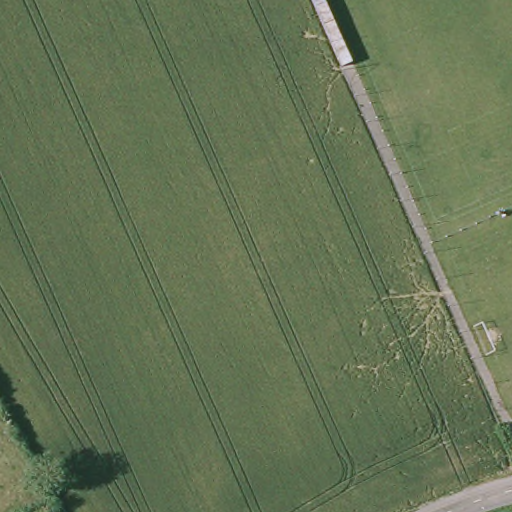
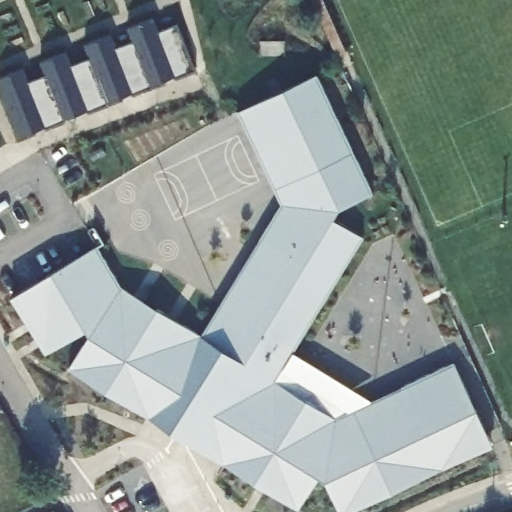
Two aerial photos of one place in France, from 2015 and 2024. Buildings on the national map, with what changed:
unchanged [(351,67),(341,72),(309,0),(321,0),(351,67)]
new [(175,80),(172,73),(151,82),(153,89),(133,97),(130,90),(108,99),(111,106),(89,115),(86,108),(65,117),(67,123),(46,131),(44,125),(20,134),(0,84),(0,81),(25,70),(30,84),(47,77),(42,64),(67,54),(72,67),(91,59),(86,46),(111,36),(116,49),(133,42),(128,29),(154,19),(159,32),(178,24),(196,72),(175,80)]
new [(122,287),(202,335),(280,204),(238,114),(318,76),(372,194),(339,209),(334,221),(361,238),(292,353),(371,401),(454,363),(491,445),(344,511),(318,478),(296,505),(227,472),(207,420),(166,395),(152,413),(66,367),(85,334),(43,355),(16,295),(99,251),(122,287)]
new [(164,396),(207,421),(224,464),(150,419),(164,396)]

